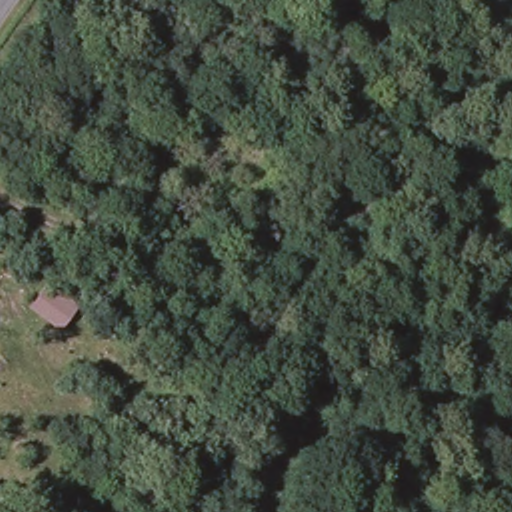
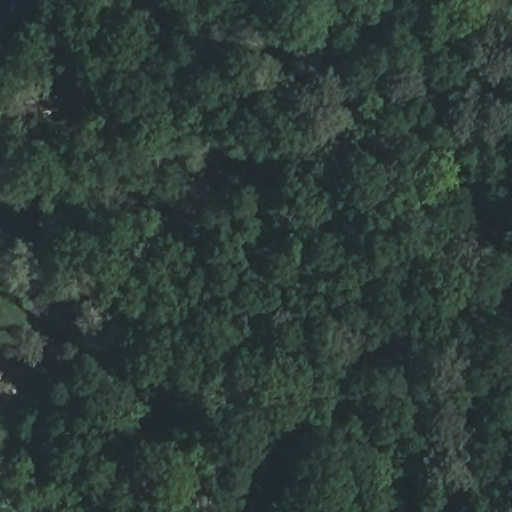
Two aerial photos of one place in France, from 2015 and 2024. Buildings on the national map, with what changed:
unchanged [(63,324),(51,324),(25,305),(42,279),(77,303),(63,324)]

